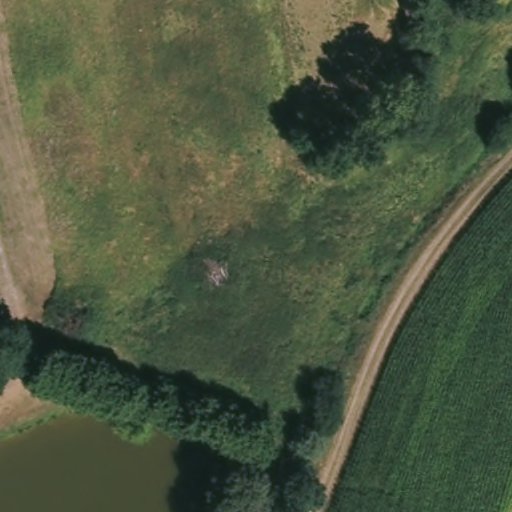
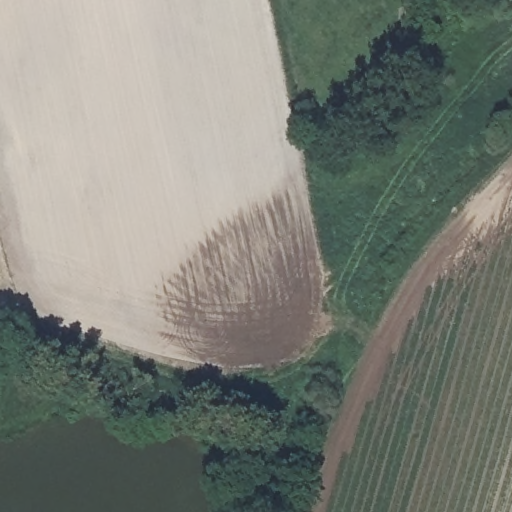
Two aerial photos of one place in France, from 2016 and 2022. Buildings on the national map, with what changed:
[]

